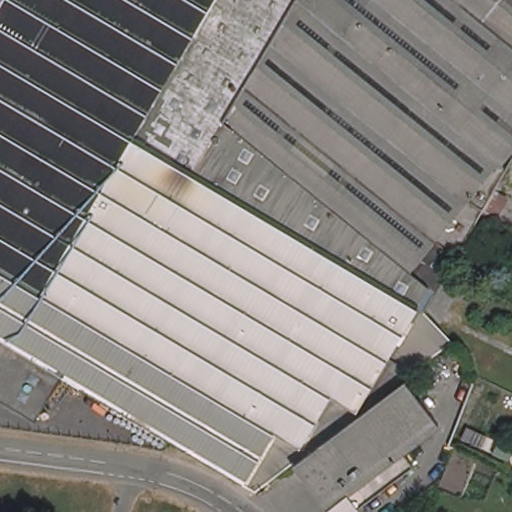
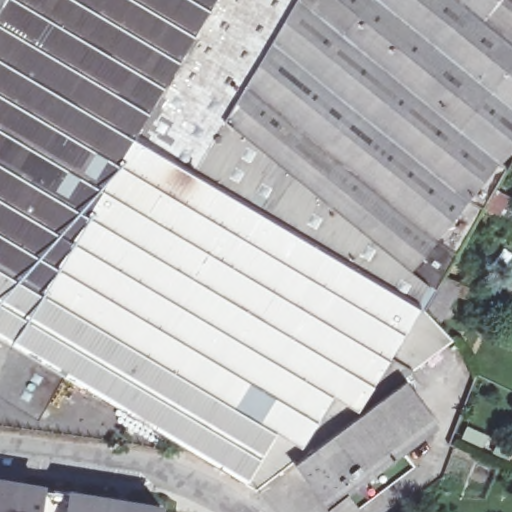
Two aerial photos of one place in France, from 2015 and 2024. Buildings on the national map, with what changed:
unchanged [(1,0),(0,2),(0,0),(1,0)]
unchanged [(1,0),(136,0),(152,21),(164,0),(512,0),(512,139),(417,259),(432,273),(418,291),(424,302),(425,303),(451,341),(417,366),(404,375),(333,427),(293,456),(260,480),(255,484),(148,422),(66,375),(0,338),(0,2),(1,0)]
unchanged [(136,0),(164,0),(152,21),(136,0)]
new [(512,226),(512,253),(495,245),(505,223),(512,226)]
unchanged [(66,375),(42,419),(0,395),(0,338),(66,375)]
unchanged [(333,427),(404,375),(437,418),(400,447),(410,460),(340,512),(336,512),(293,456),(333,427)]
new [(42,489),(42,490),(55,492),(56,491),(162,508),(161,512),(0,512),(0,482),(42,489)]

